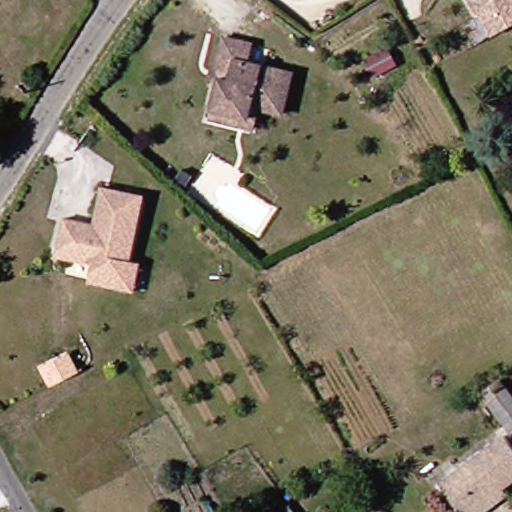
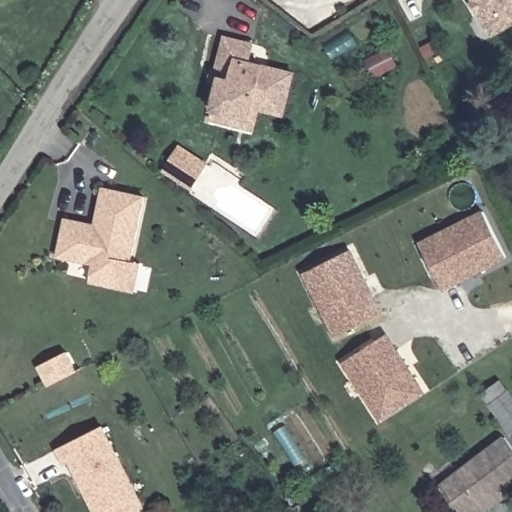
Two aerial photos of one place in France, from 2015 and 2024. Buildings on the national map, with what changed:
unchanged [(493,36),(474,0),(512,0),(512,25),(493,36)]
unchanged [(211,120),(212,110),(222,74),(217,73),(225,38),(254,45),(249,64),(293,75),(283,116),(259,110),(257,121),(254,131),(211,120)]
unchanged [(376,78),(367,60),(389,49),(398,66),(376,78)]
unchanged [(136,286),(90,277),(92,267),(94,259),(57,252),(66,214),(85,218),(96,220),(104,182),(146,191),(132,256),(142,258),(136,286)]
unchanged [(194,190),(189,200),(179,195),(184,185),(194,190)]
new [(484,212),(507,257),(443,289),(421,244),(484,212)]
new [(350,250),(382,313),(332,338),(301,274),(350,250)]
new [(387,334),(425,394),(382,421),(344,362),(387,334)]
new [(66,354),(76,373),(67,377),(47,387),(38,368),(57,358),(66,354)]
unchanged [(508,439),(486,409),(478,399),(495,387),(502,397),(512,410),(512,436),(508,439)]
new [(147,507),(136,512),(96,512),(72,463),(68,465),(60,450),(106,426),(147,507)]
unchanged [(486,512),(452,512),(436,491),(501,442),(512,457),(512,483),(497,494),(502,500),(486,512)]

